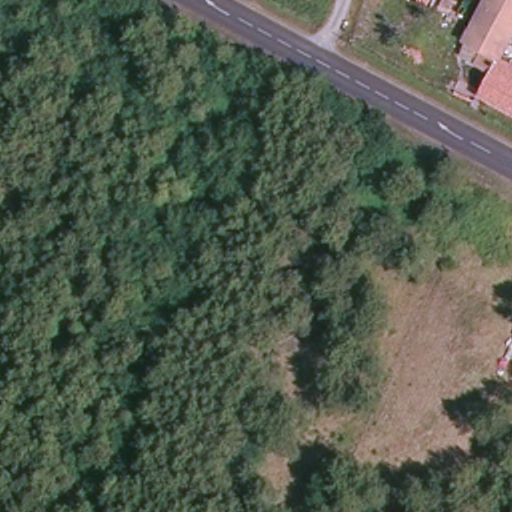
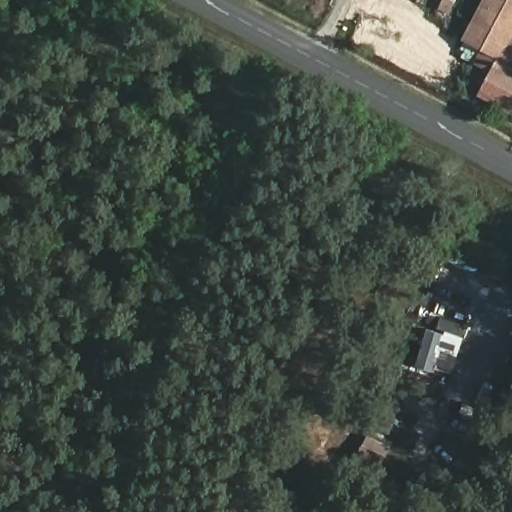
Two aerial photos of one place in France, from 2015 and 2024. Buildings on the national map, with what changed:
unchanged [(468,18),(478,0),(503,0),(512,5),(512,20),(503,38),(468,18)]
unchanged [(503,0),(512,0),(512,5),(503,0)]
unchanged [(474,90),(479,81),(474,40),(460,34),(468,18),(503,38),(496,52),(512,61),(512,109),(474,90)]
new [(427,329),(436,332),(440,320),(469,329),(454,376),(416,365),(427,329)]

